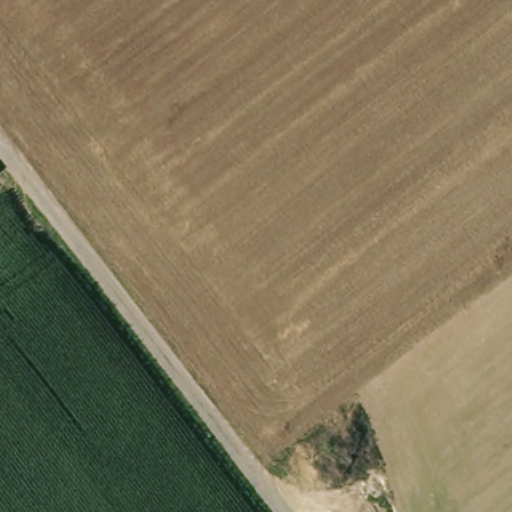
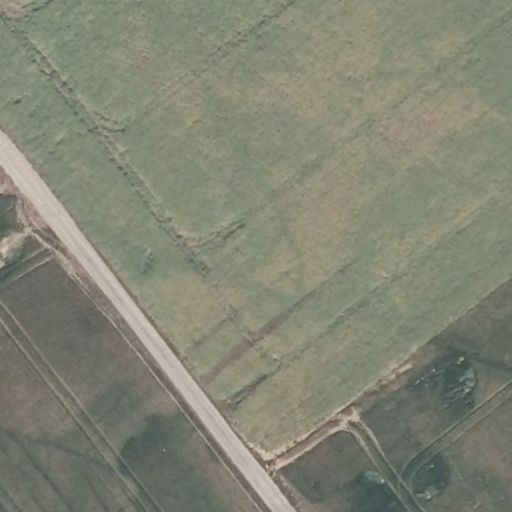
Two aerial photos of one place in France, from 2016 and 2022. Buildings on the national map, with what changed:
unchanged [(5,172),(0,176),(0,167),(5,172)]

